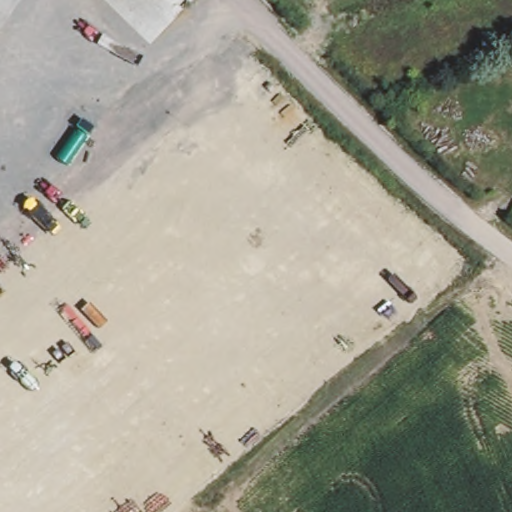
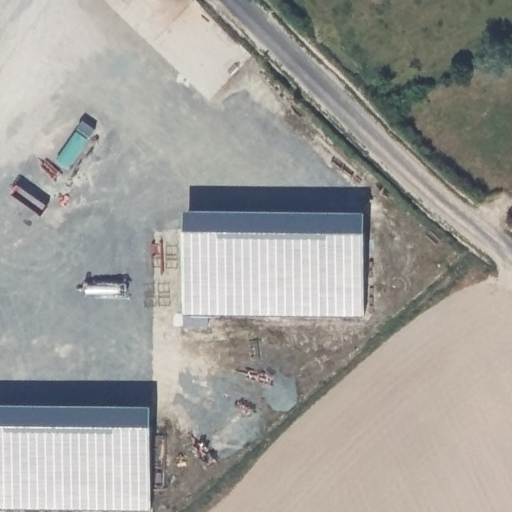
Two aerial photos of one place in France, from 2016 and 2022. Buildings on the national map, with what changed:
new [(185,229),(366,231),(365,316),(209,314),(208,325),(185,325),(184,314),(185,229)]
new [(152,425),(151,510),(0,508),(0,423),(152,425)]

